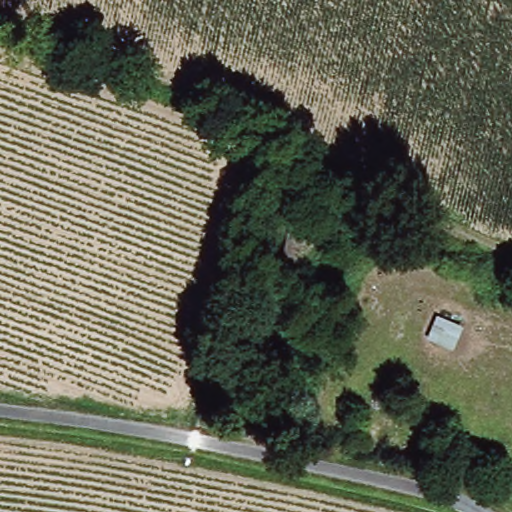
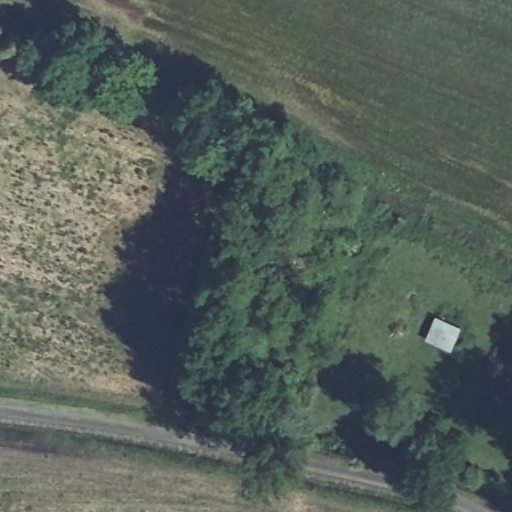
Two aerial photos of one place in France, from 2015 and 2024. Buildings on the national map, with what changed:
[]

